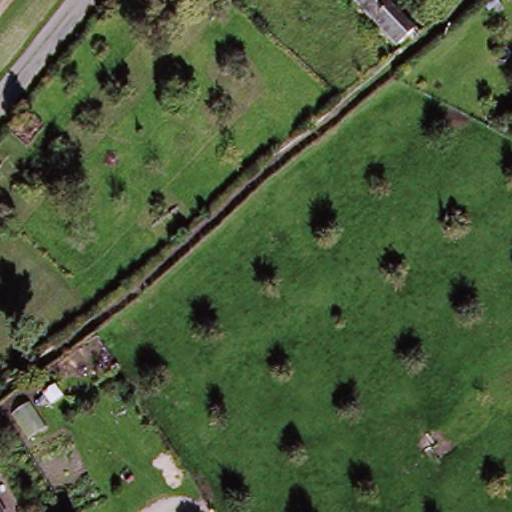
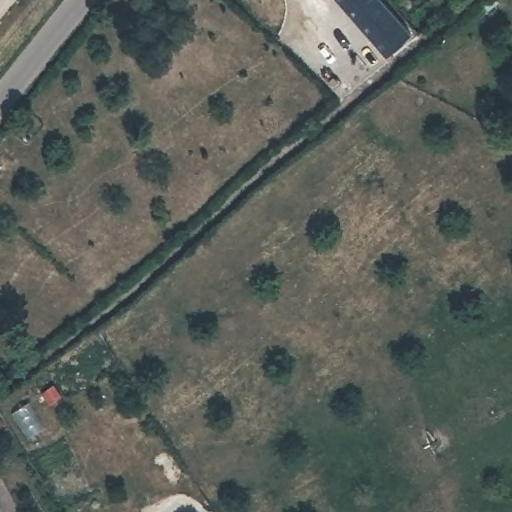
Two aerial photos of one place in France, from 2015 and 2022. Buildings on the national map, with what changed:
unchanged [(357,0),(383,0),(409,26),(397,39),(357,0)]
unchanged [(35,381),(47,372),(57,384),(45,393),(35,381)]

